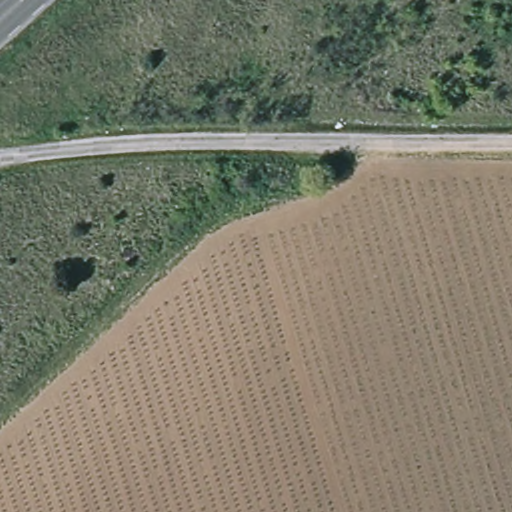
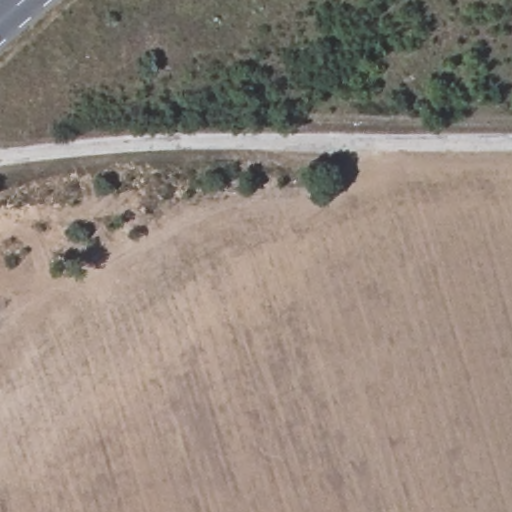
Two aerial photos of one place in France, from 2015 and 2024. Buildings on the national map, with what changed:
[]

